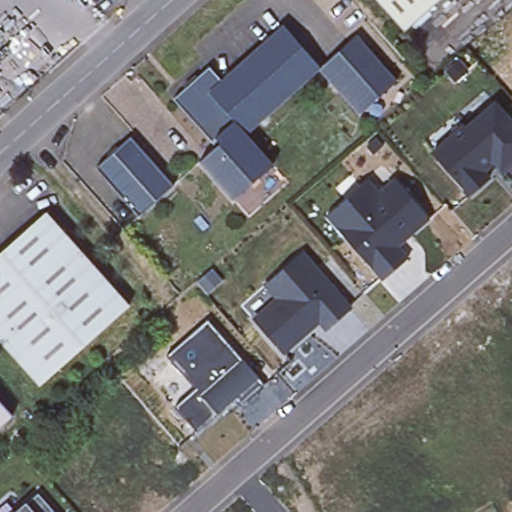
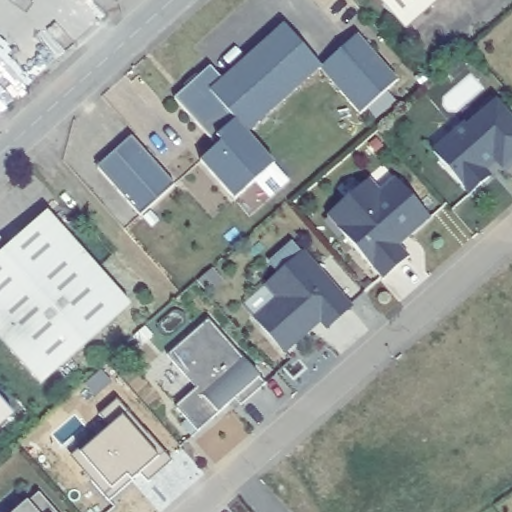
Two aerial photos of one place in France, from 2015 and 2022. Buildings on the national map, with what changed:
unchanged [(378,0),(441,0),(406,32),(378,0)]
unchanged [(285,22),(321,64),(316,67),(247,130),(275,162),(236,197),(201,158),(223,139),(218,134),(213,139),(213,137),(175,96),(211,63),(225,78),(285,22)]
unchanged [(329,56),(351,36),(357,31),(396,76),(360,108),(321,64),(329,56)]
unchanged [(471,199),(435,157),(496,102),(512,120),(512,161),(471,199)]
unchanged [(171,183),(137,214),(93,164),(127,135),(171,183)]
unchanged [(407,246),(415,256),(385,283),(330,219),(371,180),(382,190),(395,177),(435,218),(407,246)]
unchanged [(131,307),(43,387),(0,339),(0,258),(47,215),(131,307)]
unchanged [(327,332),(319,325),(284,355),(252,320),(275,298),(263,284),(301,251),(353,308),(327,332)]
unchanged [(243,406),(237,399),(196,432),(175,408),(197,387),(168,356),(207,321),(266,386),(243,406)]
unchanged [(0,425),(0,395),(15,412),(0,425)]
new [(118,397),(171,460),(149,481),(142,471),(110,502),(70,455),(107,423),(100,413),(118,397)]
unchanged [(39,496),(54,512),(19,512),(39,496)]

